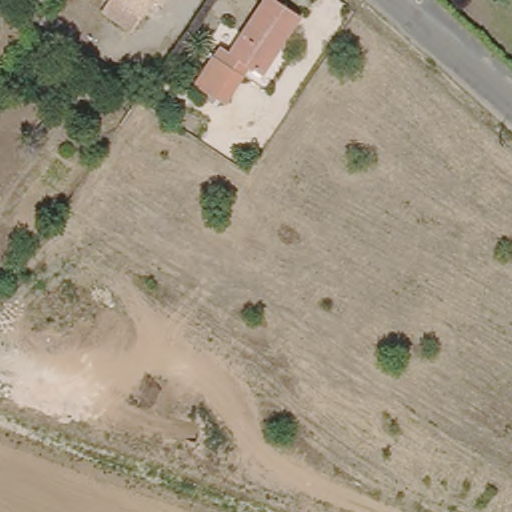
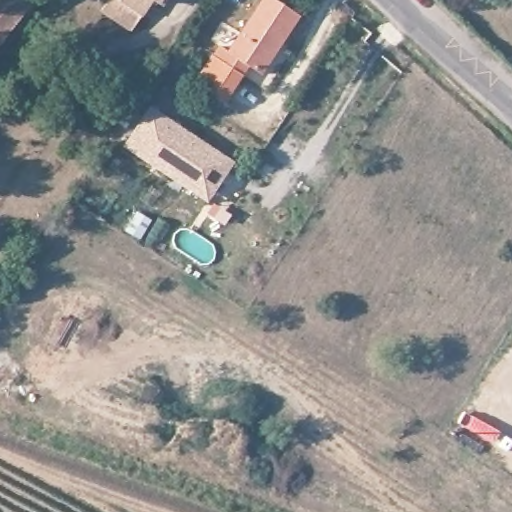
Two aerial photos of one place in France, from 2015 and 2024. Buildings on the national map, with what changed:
new [(35,0),(0,44),(0,0),(35,0)]
unchanged [(155,0),(146,13),(132,32),(102,16),(110,0),(155,0)]
unchanged [(160,0),(165,0),(163,2),(160,0)]
unchanged [(199,86),(222,46),(233,53),(264,0),(277,0),(301,15),(265,75),(247,64),(242,73),(224,101),(199,86)]
demolished [(174,131),(160,148),(124,121),(138,103),(174,131)]
new [(122,147),(150,106),(235,163),(206,202),(122,147)]

